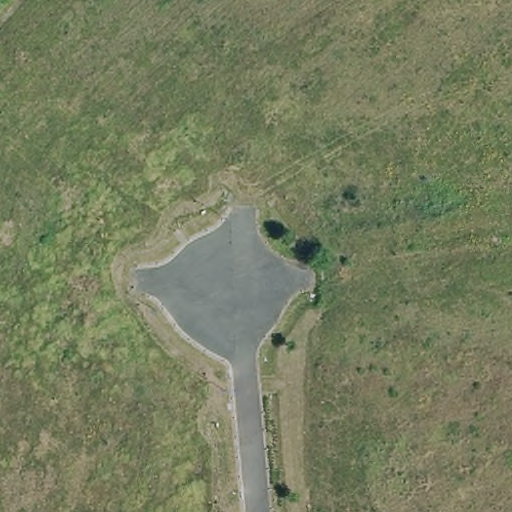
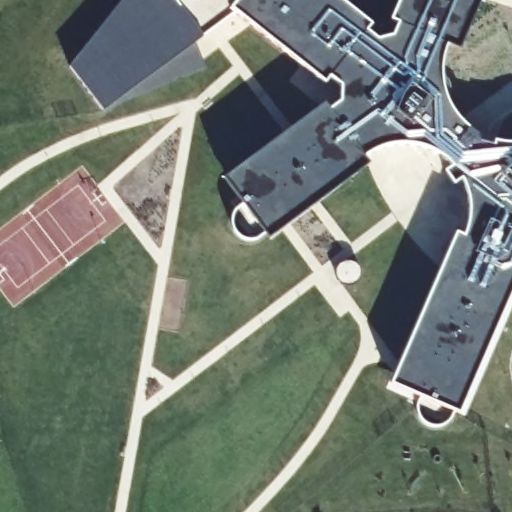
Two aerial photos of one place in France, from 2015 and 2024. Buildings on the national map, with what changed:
new [(366,31),(378,41),(392,38),(398,24),(391,20),(399,0),(482,0),(461,51),(444,46),(441,68),(444,91),(451,105),(464,123),(477,135),(476,140),(492,145),(493,140),(509,144),(512,144),(512,290),(459,412),(391,383),(454,232),(464,235),(469,216),(469,196),(463,178),(454,184),(444,172),(453,166),(433,150),(413,143),(395,144),(381,148),(371,152),(364,157),(369,165),(269,237),(224,178),(324,104),(329,111),(341,100),(341,86),(330,77),(326,83),(236,12),(196,42),(205,71),(103,112),(68,66),(122,0),(341,0),(372,24),(366,31)]

